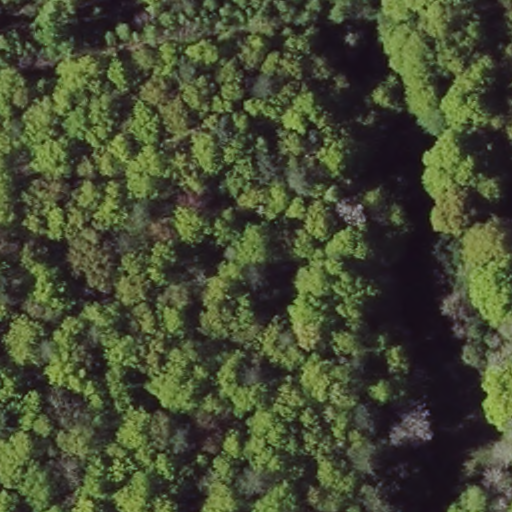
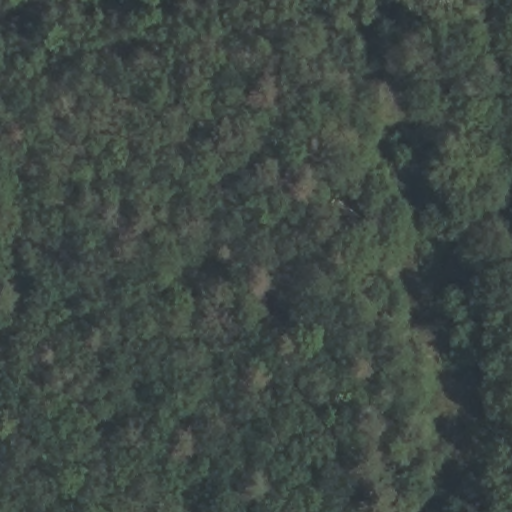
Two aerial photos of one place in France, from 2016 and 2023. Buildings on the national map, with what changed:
unchanged [(470,384),(491,376),(503,391),(480,407),(470,384)]

